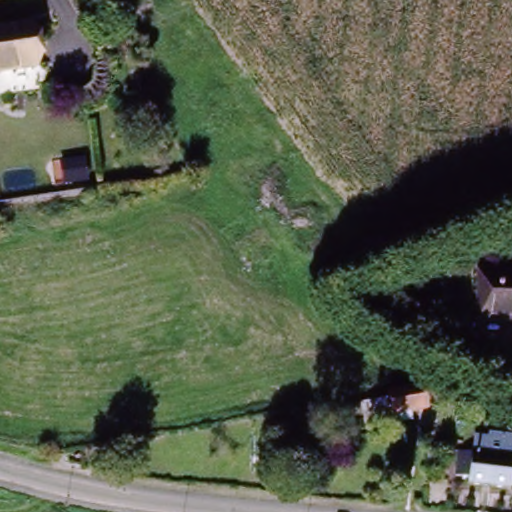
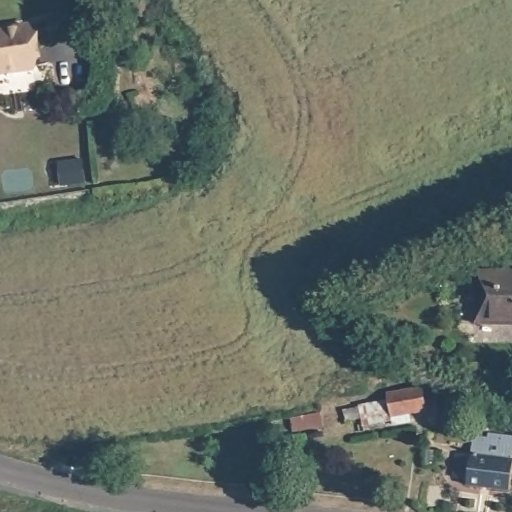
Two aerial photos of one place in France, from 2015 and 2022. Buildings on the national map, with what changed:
unchanged [(24,26),(30,68),(0,72),(0,29),(24,26)]
unchanged [(477,270),(512,271),(512,322),(477,321),(477,270)]
unchanged [(416,415),(397,420),(396,414),(372,420),(367,402),(395,396),(394,392),(394,388),(428,382),(432,404),(415,408),(416,415)]
unchanged [(468,479),(455,478),(459,454),(477,456),(479,437),(489,438),(489,433),(490,424),(512,432),(512,475),(510,489),(467,484),(468,479)]

